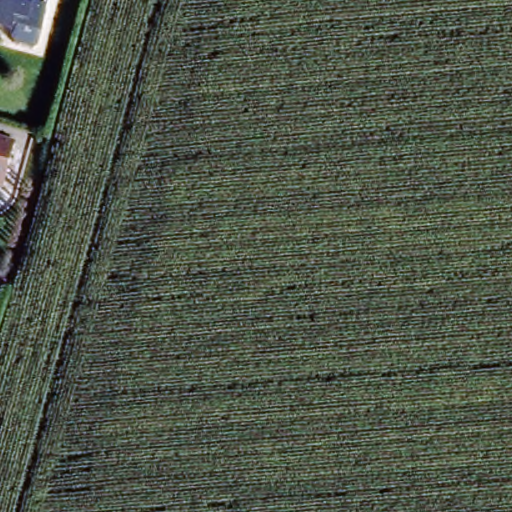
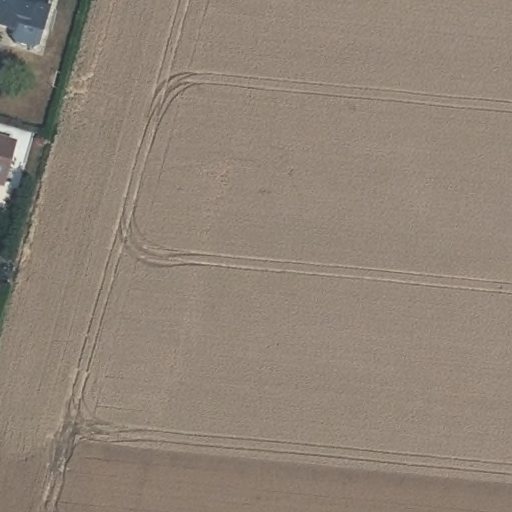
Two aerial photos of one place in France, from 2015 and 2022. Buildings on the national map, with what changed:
unchanged [(34,47),(28,50),(10,46),(7,40),(10,26),(0,24),(0,0),(44,0),(34,47)]
unchanged [(5,191),(0,190),(0,144),(16,148),(5,191)]

